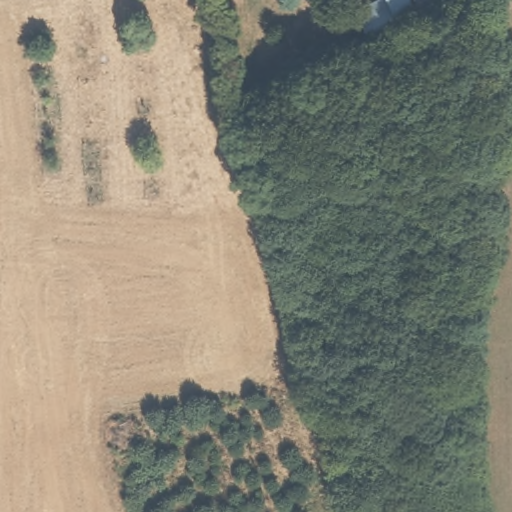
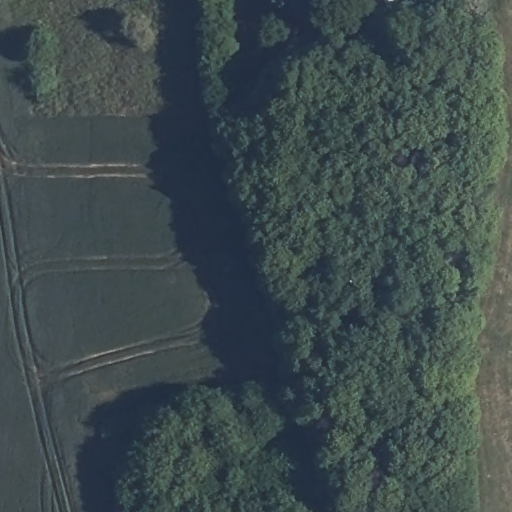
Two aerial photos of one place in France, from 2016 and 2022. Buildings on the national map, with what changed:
unchanged [(409,0),(416,17),(369,38),(353,14),(384,0),(409,0)]

